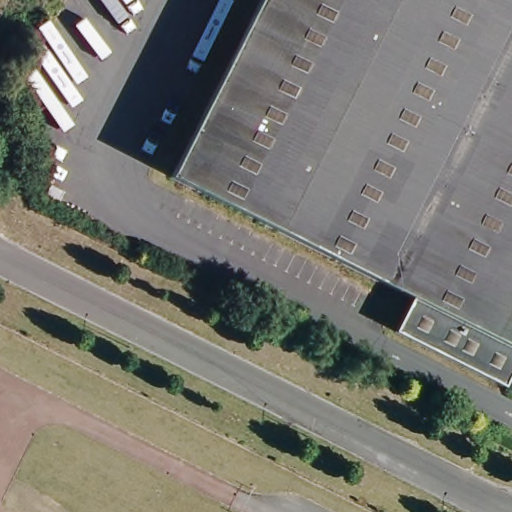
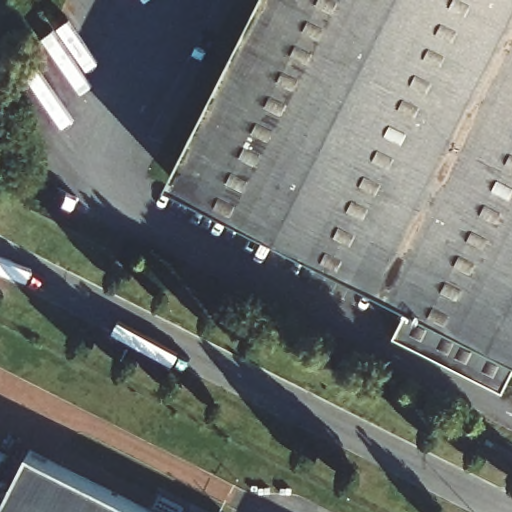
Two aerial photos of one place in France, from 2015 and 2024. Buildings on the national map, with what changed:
unchanged [(396,331),(412,299),(170,176),(259,0),(512,0),(512,374),(506,387),(396,331)]
new [(153,512),(2,512),(31,451),(153,512)]

